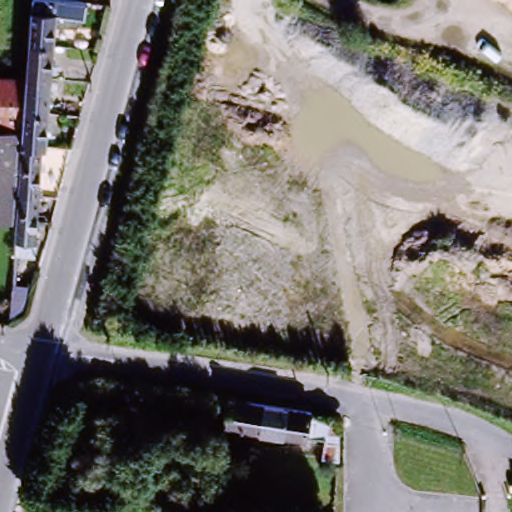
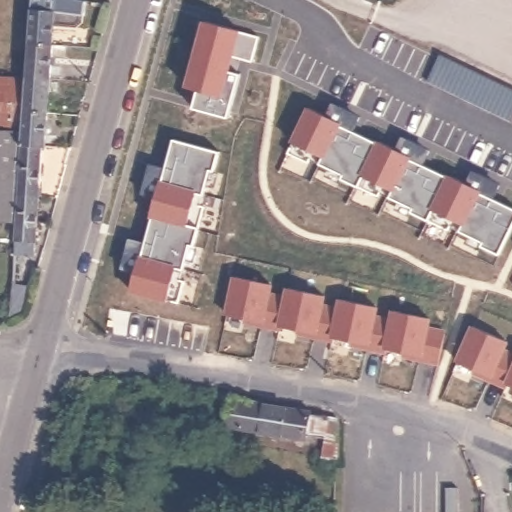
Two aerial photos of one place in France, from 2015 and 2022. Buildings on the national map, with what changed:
unchanged [(32,249),(14,247),(16,219),(0,218),(0,78),(26,80),(27,75),(29,42),(30,31),(33,0),(62,0),(85,0),(85,14),(82,14),(81,20),(77,24),(55,23),(54,45),(51,78),(48,111),(45,146),(42,147),(38,195),(35,240),(33,240),(32,249)]
new [(259,37),(249,76),(242,75),(230,120),(193,110),(198,91),(187,88),(205,22),(259,37)]
new [(512,121),(428,80),(441,54),(512,88),(512,121)]
new [(333,106),(355,116),(348,130),(396,151),(402,139),(424,150),(417,164),(465,186),(471,173),(494,185),(487,198),(512,210),(512,229),(499,257),(482,248),(481,251),(467,245),(469,239),(451,229),(449,232),(413,214),(410,218),(396,211),(399,205),(380,195),(379,199),(342,180),(341,183),(327,176),(330,171),(310,161),(309,165),(288,155),(310,110),(327,119),(333,106)]
new [(219,153),(214,172),(217,173),(214,189),(206,187),(200,205),(205,207),(195,247),(198,247),(194,264),(186,261),(180,281),(184,282),(178,305),(131,292),(136,273),(120,271),(128,240),(145,243),(157,199),(142,195),(150,165),(165,170),(173,141),(219,153)]
new [(268,286),(266,296),(285,299),(286,290),(321,296),(319,307),(339,311),(341,302),(375,309),(373,318),(393,322),(394,313),(428,320),(426,330),(443,332),(439,363),(404,357),(405,353),(387,350),(386,353),(350,346),(351,342),(334,340),(333,341),(297,335),(298,330),(280,327),(280,330),(244,323),(244,320),(226,316),(233,278),(268,286)]
unchanged [(32,295),(27,312),(24,316),(20,319),(18,321),(14,323),(9,324),(11,293),(32,295)]
new [(500,351),(512,356),(512,386),(507,384),(505,387),(471,373),(473,368),(457,363),(471,327),(504,341),(500,351)]
unchanged [(337,464),(321,461),(323,442),(310,440),(309,445),(229,431),(233,400),(251,402),(316,415),(315,417),(340,421),(337,464)]

